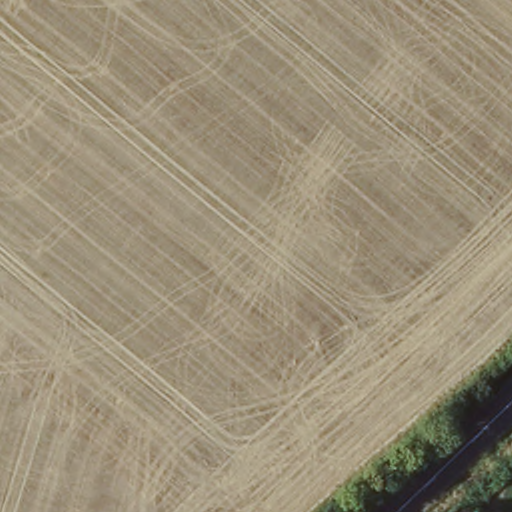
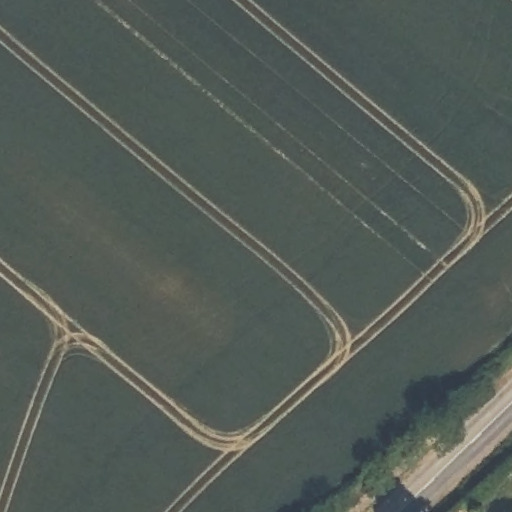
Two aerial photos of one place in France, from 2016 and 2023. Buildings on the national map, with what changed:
[]

